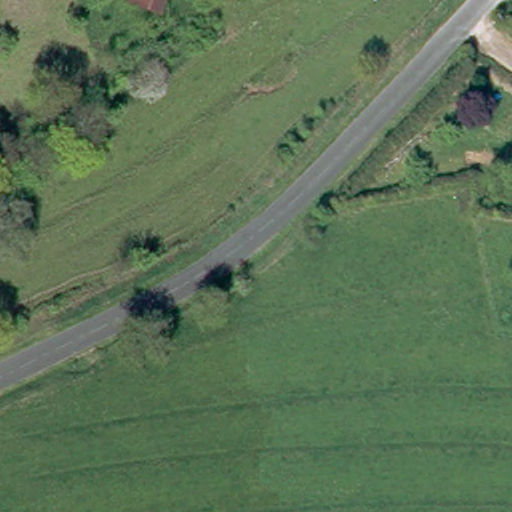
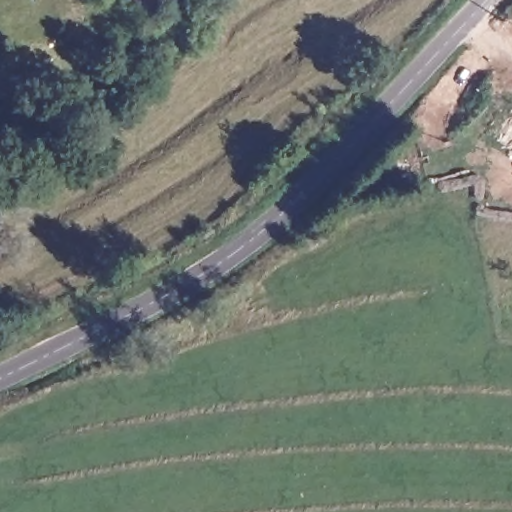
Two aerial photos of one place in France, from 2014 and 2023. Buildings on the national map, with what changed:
unchanged [(129,0),(165,0),(162,10),(129,0)]

